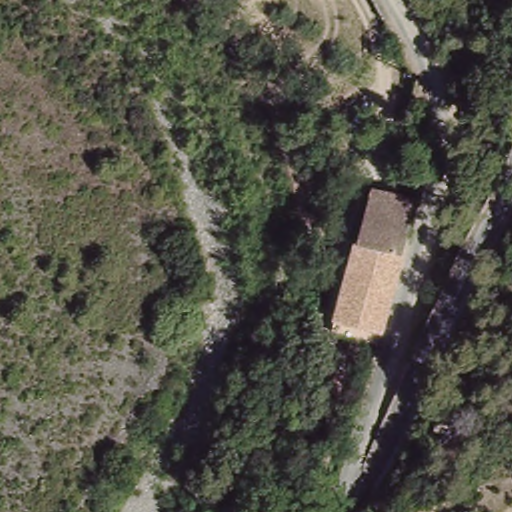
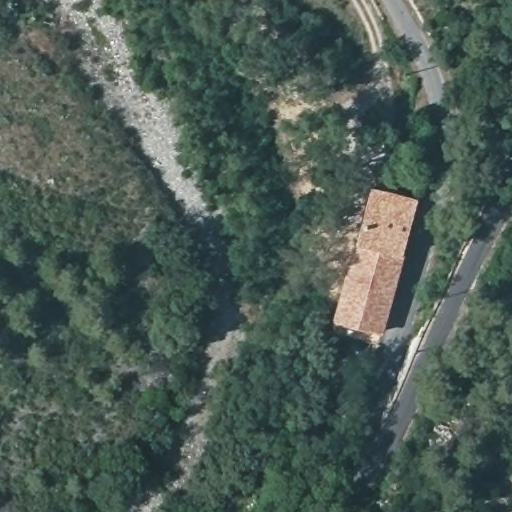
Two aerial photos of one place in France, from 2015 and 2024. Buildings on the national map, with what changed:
unchanged [(344,336),(346,321),(362,192),(407,194),(388,324),(364,322),(362,337),(344,336)]

